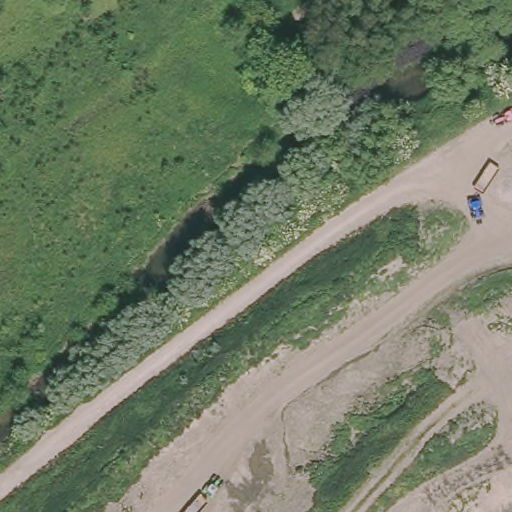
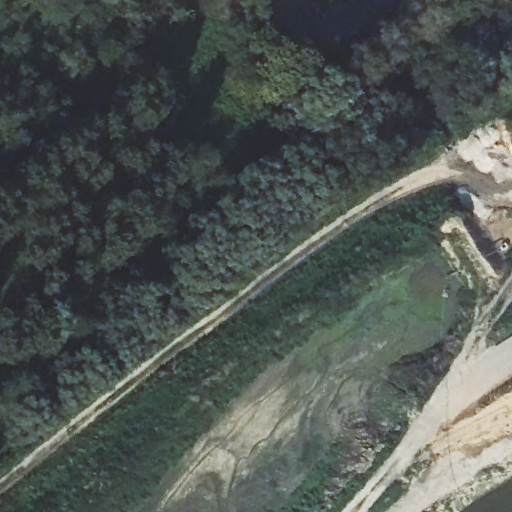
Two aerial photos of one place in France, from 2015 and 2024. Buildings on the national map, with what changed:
[]

